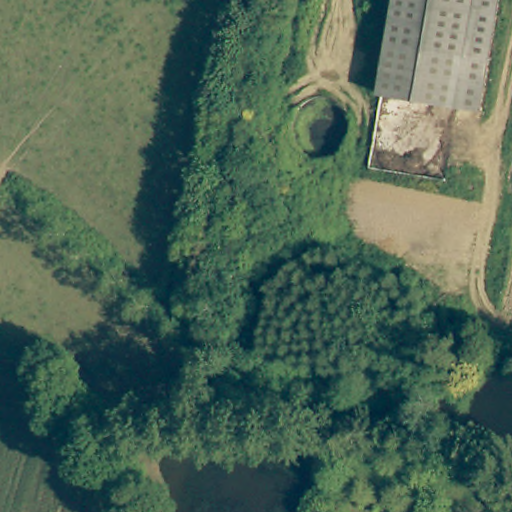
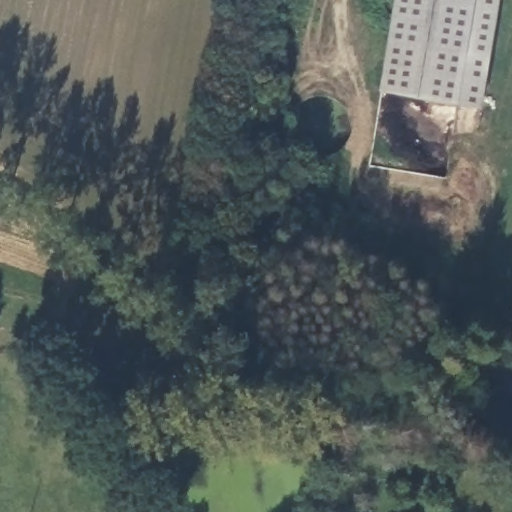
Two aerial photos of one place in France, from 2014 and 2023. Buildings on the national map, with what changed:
unchanged [(473,0),(499,0),(483,113),(381,95),(390,43),(465,54),(473,0)]
unchanged [(465,54),(390,43),(397,0),(473,0),(465,54)]

